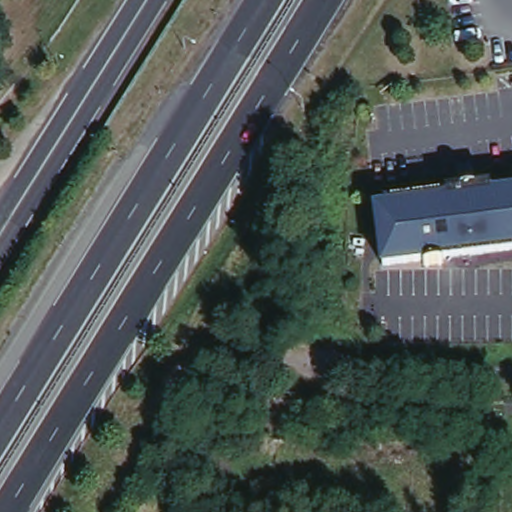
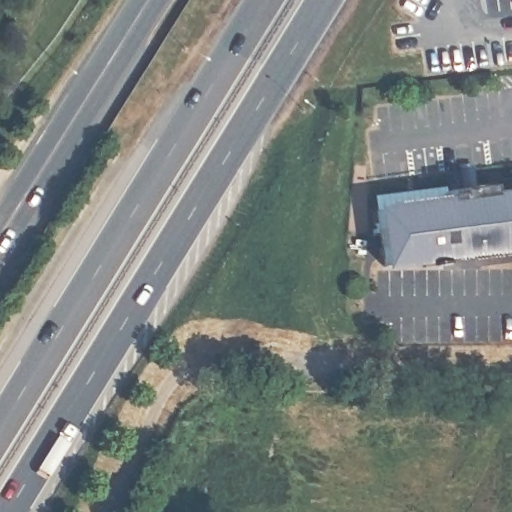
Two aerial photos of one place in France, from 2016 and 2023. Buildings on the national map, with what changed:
unchanged [(373,205),(459,196),(456,190),(490,186),(491,192),(512,189),(512,248),(421,258),(422,263),(382,268),(373,205)]

